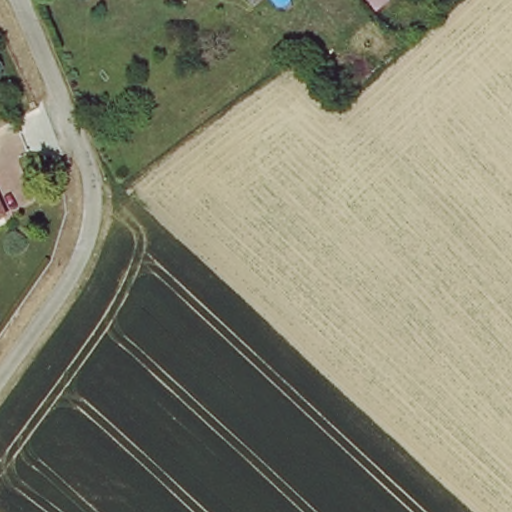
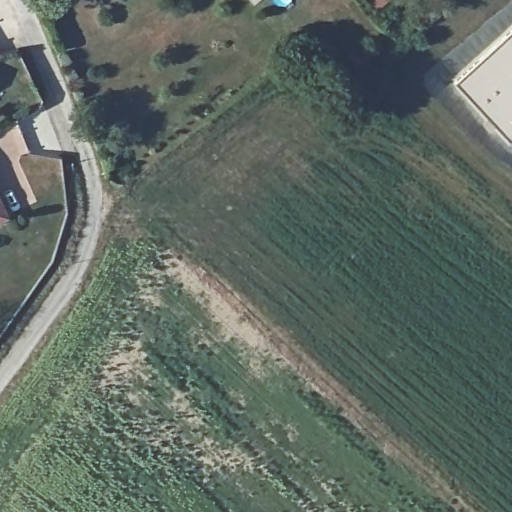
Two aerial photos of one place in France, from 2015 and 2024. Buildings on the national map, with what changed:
new [(512,141),(510,142),(456,84),(512,34),(512,141)]
unchanged [(6,218),(0,221),(0,204),(6,218)]

